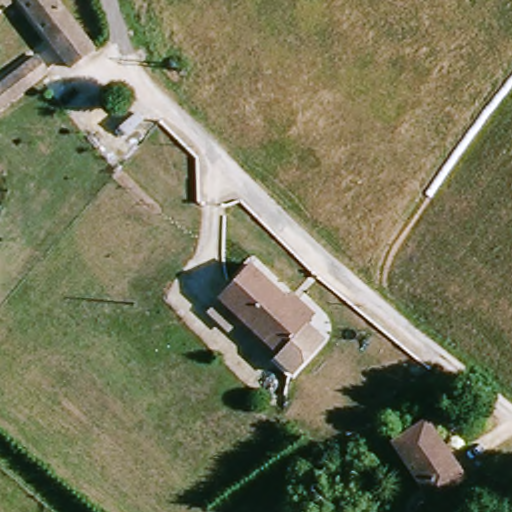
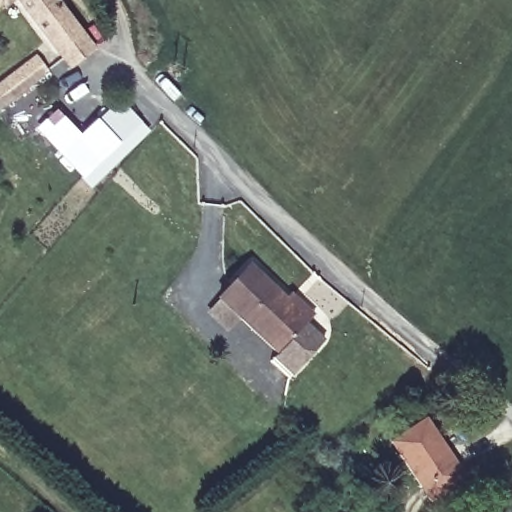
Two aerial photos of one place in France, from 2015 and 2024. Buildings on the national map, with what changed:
unchanged [(0,5),(0,0),(7,0),(2,4),(0,5)]
unchanged [(92,49),(70,67),(62,58),(17,0),(53,0),(92,49)]
unchanged [(0,108),(0,82),(35,55),(49,72),(0,108)]
new [(57,107),(80,132),(120,97),(152,131),(91,187),(35,127),(57,107)]
unchanged [(215,308),(221,303),(232,292),(251,270),(290,306),(303,294),(320,311),(308,322),(311,325),(280,359),(242,323),(237,330),(215,308)]
unchanged [(455,483),(427,501),(387,443),(422,421),(442,450),(462,478),(455,483)]

